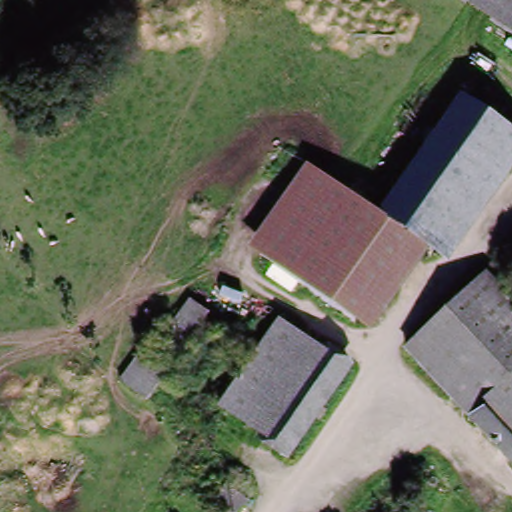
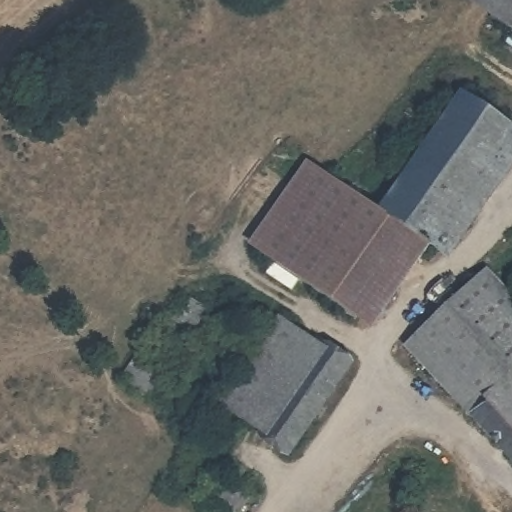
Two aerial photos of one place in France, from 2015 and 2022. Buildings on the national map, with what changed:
unchanged [(504,29),(475,8),(463,0),(512,0),(512,35),(504,29)]
unchanged [(466,98),(512,132),(512,140),(430,250),(427,247),(418,241),(381,213),(466,98)]
unchanged [(445,261),(430,250),(512,140),(512,172),(445,261)]
unchanged [(264,253),(252,245),(312,163),(324,171),(264,253)]
unchanged [(302,282),(298,279),(264,253),(324,171),(357,195),(362,199),(302,282)]
unchanged [(357,322),(302,282),(362,199),(381,213),(418,241),(357,322)]
unchanged [(427,247),(365,328),(357,322),(418,241),(427,247)]
unchanged [(408,355),(487,277),(512,301),(512,377),(511,378),(471,419),(408,355)]
unchanged [(138,356),(165,321),(180,301),(207,323),(192,342),(165,377),(138,356)]
unchanged [(262,436),(221,404),(280,320),(322,352),(262,436)]
unchanged [(322,352),(350,372),(289,457),(262,436),(322,352)]
unchanged [(165,377),(145,403),(118,382),(138,356),(165,377)]
unchanged [(512,379),(512,461),(471,419),(511,378),(512,379)]
unchanged [(249,512),(220,512),(216,509),(227,494),(250,511),(249,512)]

